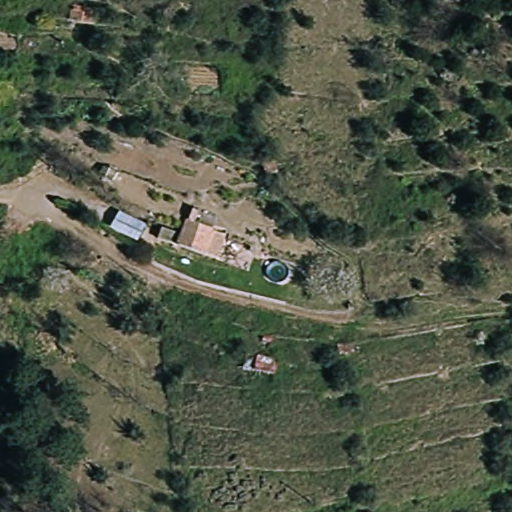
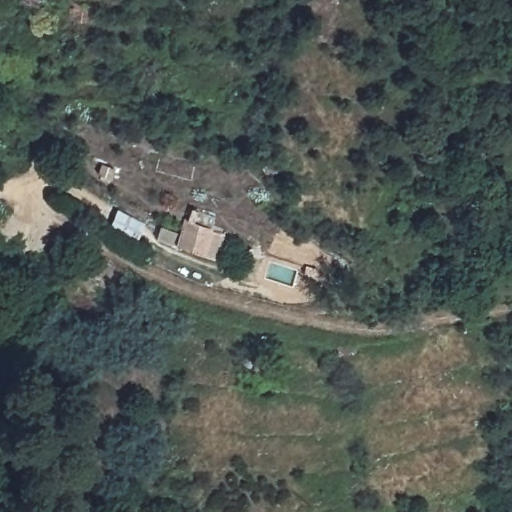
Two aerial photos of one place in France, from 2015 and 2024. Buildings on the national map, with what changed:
unchanged [(71,1),(96,1),(96,14),(71,15),(71,1)]
unchanged [(108,230),(118,208),(133,215),(148,221),(138,244),(125,238),(108,230)]
unchanged [(181,246),(188,220),(215,227),(209,252),(181,246)]

